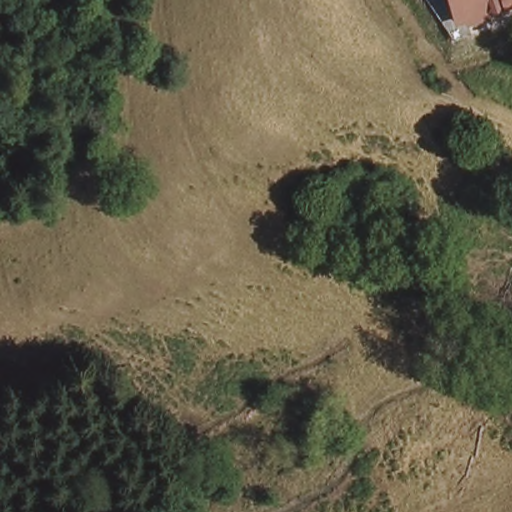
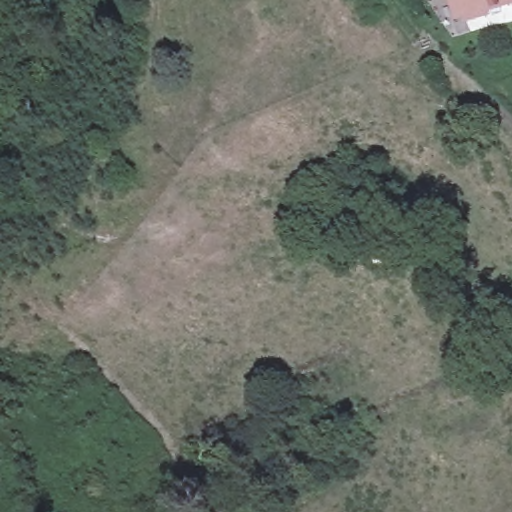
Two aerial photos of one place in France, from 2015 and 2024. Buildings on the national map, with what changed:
unchanged [(512,0),(512,1),(490,9),(490,13),(469,19),(468,17),(457,20),(450,0),(512,0)]

